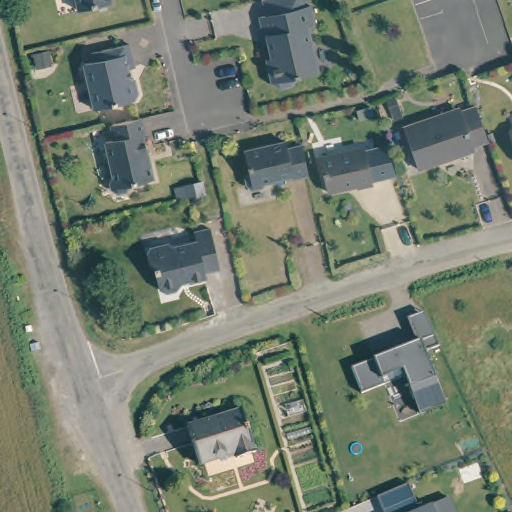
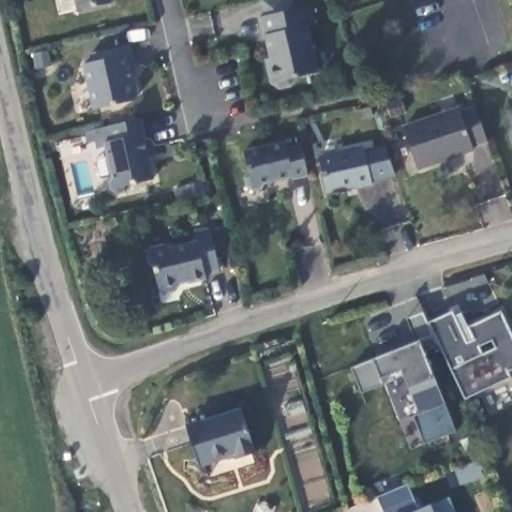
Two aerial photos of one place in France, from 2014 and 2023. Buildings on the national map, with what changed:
unchanged [(77,12),(75,0),(111,0),(112,5),(77,12)]
unchanged [(298,0),(302,0),(305,16),(313,14),(317,32),(310,35),(320,80),(298,85),(295,92),(288,96),(280,95),(275,91),(271,84),(273,77),(275,73),(268,45),(266,45),(261,26),(269,24),(265,6),(298,0)]
unchanged [(134,42),(139,64),(132,66),(135,77),(139,76),(141,92),(138,97),(99,107),(89,61),(97,59),(95,49),(134,42)]
unchanged [(475,149),(420,169),(405,127),(460,107),(462,111),(476,106),(487,139),(474,145),(475,149)]
unchanged [(121,189),(116,190),(110,184),(107,176),(111,174),(104,139),(112,137),(109,122),(139,115),(144,131),(140,131),(152,176),(128,182),(121,189)]
unchanged [(266,181),(262,186),(256,187),(250,185),(247,180),(248,174),(251,170),(246,147),(287,139),(288,146),(303,143),(311,173),(294,177),(293,175),(266,181)]
unchanged [(328,190),(321,155),(366,145),(375,182),(358,186),(357,184),(328,190)]
unchanged [(152,270),(146,263),(144,255),(144,254),(149,247),(166,245),(171,249),(194,244),(191,235),(207,231),(217,271),(201,275),(203,281),(187,283),(179,285),(175,292),(162,293),(157,289),(152,270)]
new [(430,322),(453,311),(455,316),(463,312),(469,327),(500,312),(512,337),(512,370),(508,372),(510,377),(466,398),(430,322)]
unchanged [(373,358),(415,342),(407,319),(421,313),(435,345),(423,350),(434,378),(443,405),(418,414),(407,387),(402,377),(360,394),(350,367),(373,358)]
unchanged [(240,404),(255,448),(200,467),(185,422),(240,404)]
unchanged [(408,482),(420,509),(431,502),(449,493),(457,512),(384,512),(377,495),(408,482)]

